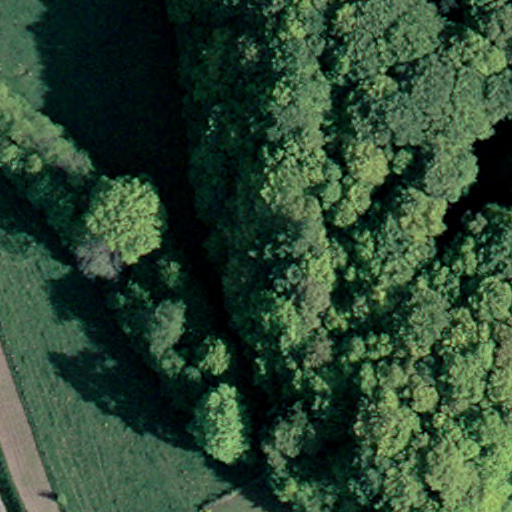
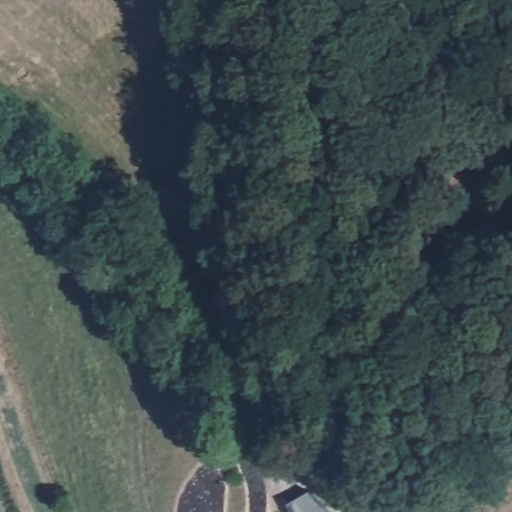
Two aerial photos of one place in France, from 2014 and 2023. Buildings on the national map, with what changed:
new [(330,512),(288,512),(284,506),(308,490),(330,512)]

